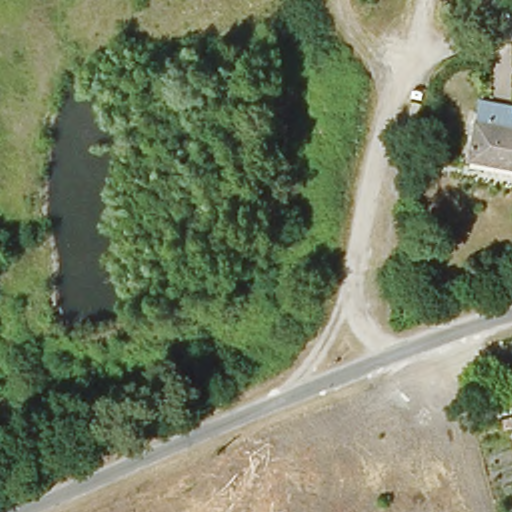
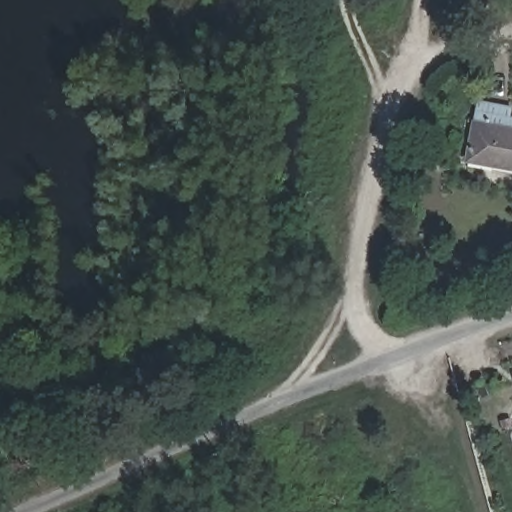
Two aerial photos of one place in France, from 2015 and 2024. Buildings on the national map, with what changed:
unchanged [(482,123),(512,129),(512,172),(475,165),(482,123)]

